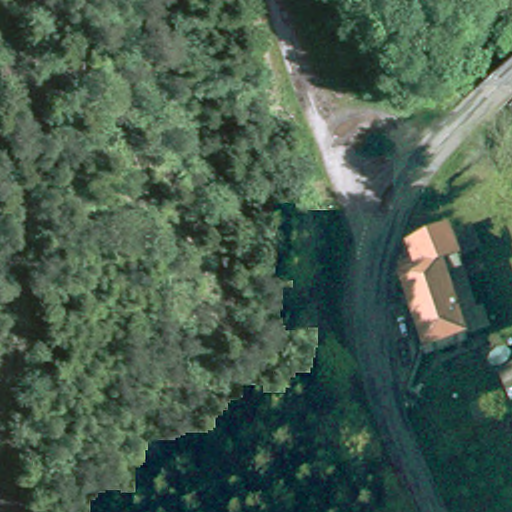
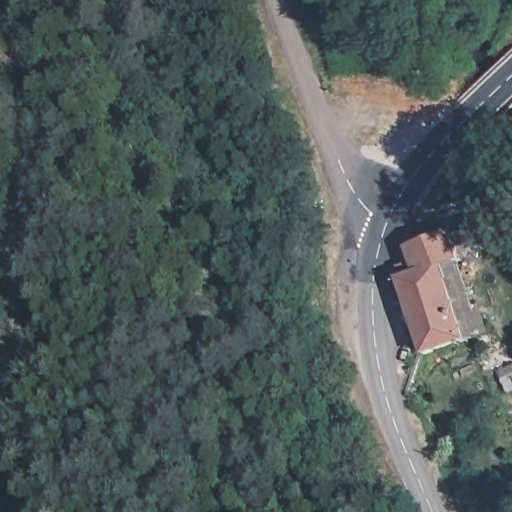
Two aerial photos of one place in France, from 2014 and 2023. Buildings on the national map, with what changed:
unchanged [(471,323),(474,332),(462,336),(419,351),(393,276),(400,274),(395,261),(407,257),(401,242),(442,228),(451,257),(448,258),(452,269),(471,323)]

